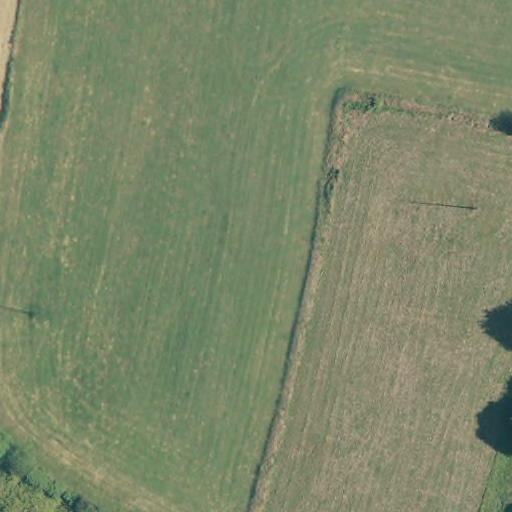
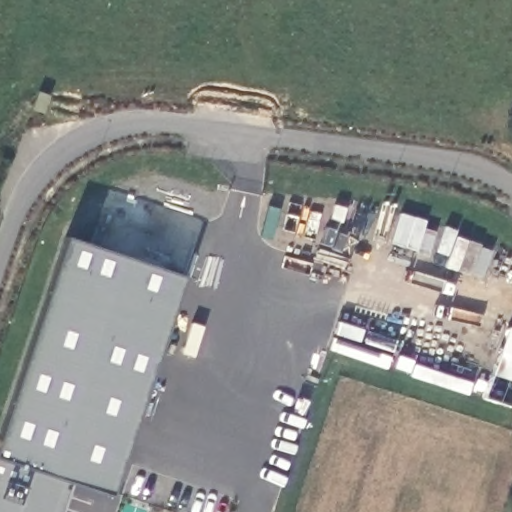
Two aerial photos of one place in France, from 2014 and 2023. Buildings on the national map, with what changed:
new [(37,91),(48,94),(42,111),(32,108),(37,91)]
new [(184,279),(109,496),(67,481),(57,512),(0,512),(0,436),(65,239),(184,279)]

